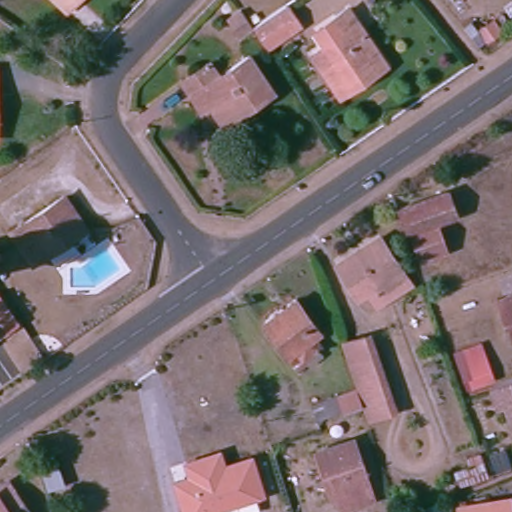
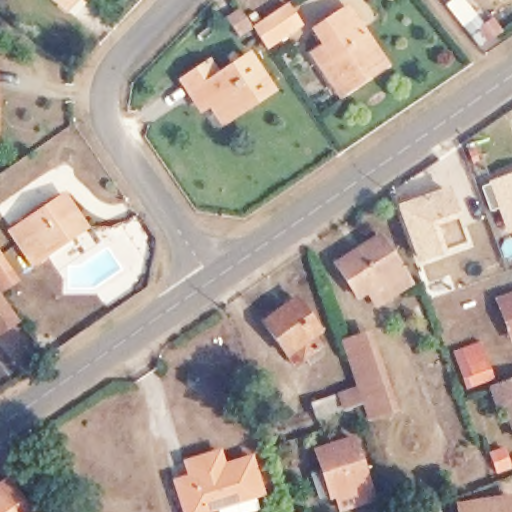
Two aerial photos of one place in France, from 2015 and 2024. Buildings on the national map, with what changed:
unchanged [(341,91),(312,50),(341,30),(331,16),(344,6),(385,63),(371,71),(353,83),(341,91)]
unchanged [(293,30),(260,53),(248,34),(280,12),(293,30)]
unchanged [(234,43),(220,24),(234,14),(248,34),(234,43)]
unchanged [(244,24),(250,20),(254,26),(248,30),(244,24)]
unchanged [(476,36),(486,29),(493,39),(483,46),(476,36)]
unchanged [(190,95),(179,80),(204,61),(216,76),(243,56),(269,90),(251,103),(247,97),(220,118),(208,102),(200,108),(190,95)]
new [(512,233),(507,235),(498,209),(489,212),(479,186),(512,173),(512,233)]
unchanged [(438,249),(417,256),(407,226),(403,228),(396,207),(442,192),(449,213),(429,219),(438,249)]
unchanged [(35,260),(12,228),(60,196),(83,227),(35,260)]
unchanged [(352,281),(347,284),(330,259),(371,232),(398,272),(382,284),(363,298),(352,281)]
unchanged [(489,303),(512,295),(512,343),(504,346),(489,303)]
unchanged [(278,355),(255,321),(289,299),(311,332),(305,336),(312,347),(296,358),(285,365),(278,355)]
unchanged [(0,338),(0,308),(14,328),(0,338)]
unchanged [(388,411),(366,419),(340,346),(362,339),(388,411)]
unchanged [(480,340),(493,375),(462,385),(462,384),(452,350),(480,340)]
unchanged [(495,407),(488,386),(491,385),(512,378),(512,440),(500,405),(495,407)]
unchanged [(334,411),(308,420),(303,405),(328,396),(334,411)]
unchanged [(478,462),(450,473),(442,454),(455,449),(453,442),(469,437),(478,462)]
unchanged [(329,496),(327,496),(317,470),(315,471),(309,453),(345,440),(365,498),(334,509),(329,496)]
unchanged [(509,465),(496,470),(490,453),(503,448),(509,465)]
unchanged [(255,496),(217,508),(207,512),(185,512),(175,482),(190,477),(186,463),(219,452),(224,467),(251,458),(262,494),(255,496)]
unchanged [(62,485),(48,489),(38,461),(53,456),(62,485)]
unchanged [(11,512),(0,512),(0,495),(11,512)]
unchanged [(512,512),(467,512),(467,509),(512,502),(512,512)]

